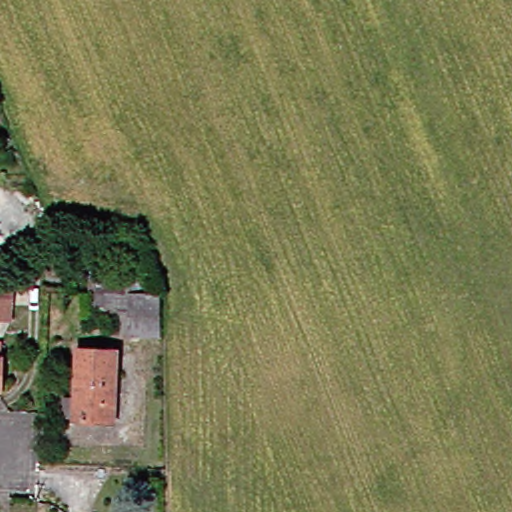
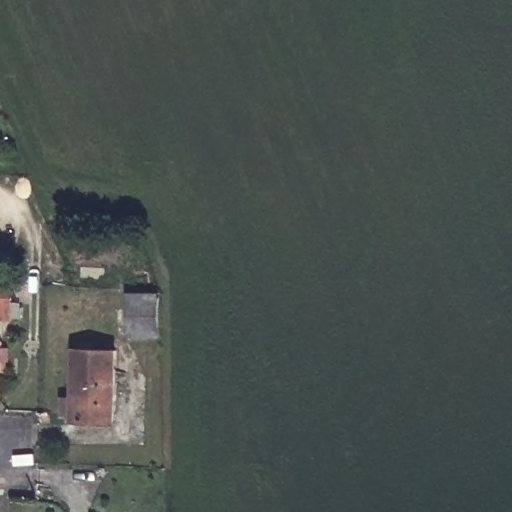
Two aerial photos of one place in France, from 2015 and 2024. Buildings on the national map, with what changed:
unchanged [(0,319),(0,259),(18,260),(17,283),(17,285),(15,320),(0,319)]
unchanged [(134,271),(146,273),(146,282),(156,282),(156,292),(168,293),(166,338),(133,336),(124,335),(126,320),(110,319),(111,306),(94,305),(96,266),(134,271)]
unchanged [(0,391),(0,342),(7,343),(6,363),(11,363),(11,372),(6,372),(5,391),(0,391)]
unchanged [(73,398),(86,398),(88,349),(126,351),(123,422),(84,421),(85,417),(72,417),(73,398)]

